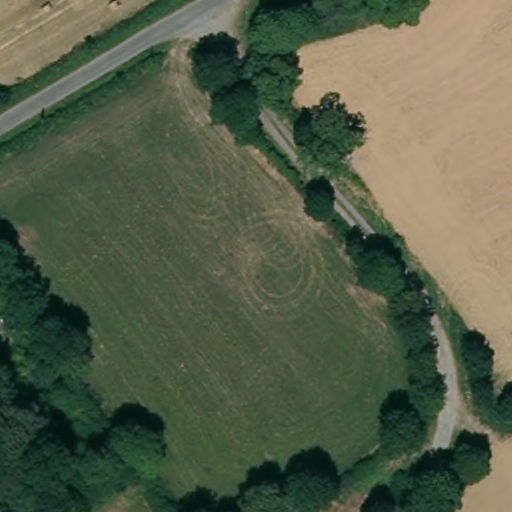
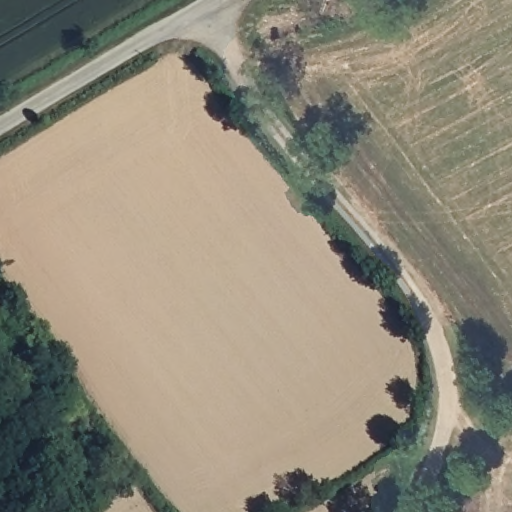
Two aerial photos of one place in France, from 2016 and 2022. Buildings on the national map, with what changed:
unchanged [(0,320),(0,293),(14,310),(0,320)]

